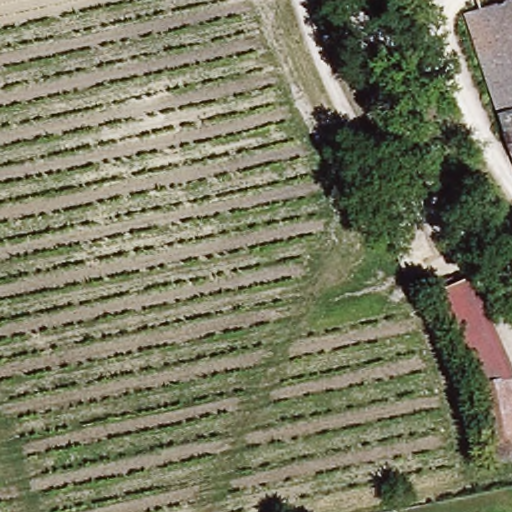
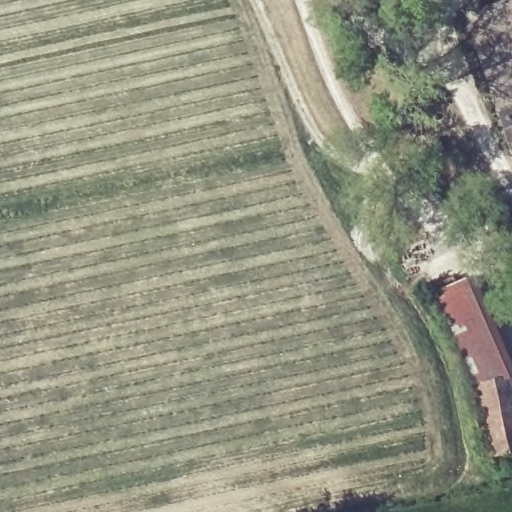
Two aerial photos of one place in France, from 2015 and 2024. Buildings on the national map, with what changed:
unchanged [(512,0),(512,156),(467,15),(512,0)]
unchanged [(481,380),(442,286),(473,274),(512,370),(481,380)]
unchanged [(481,380),(512,370),(512,372),(512,441),(498,445),(481,380)]

